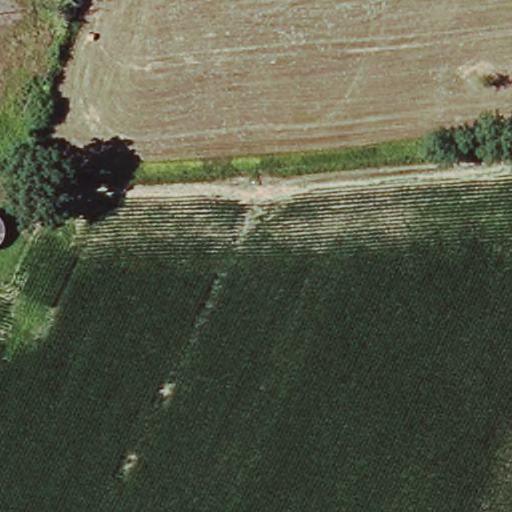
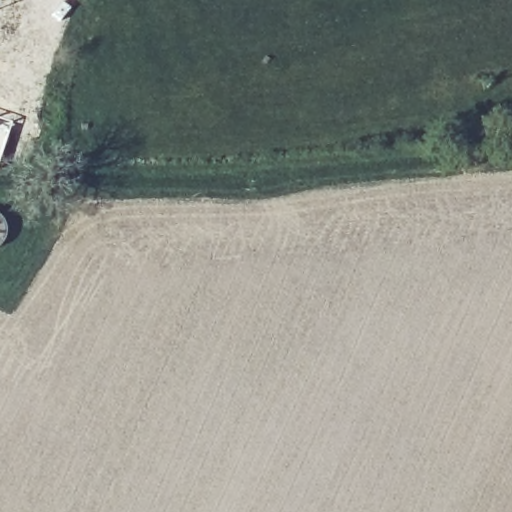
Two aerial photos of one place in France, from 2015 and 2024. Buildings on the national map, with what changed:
new [(12,124),(0,157),(0,121),(12,124)]
unchanged [(0,245),(0,215),(4,219),(7,235),(2,244),(0,245)]

